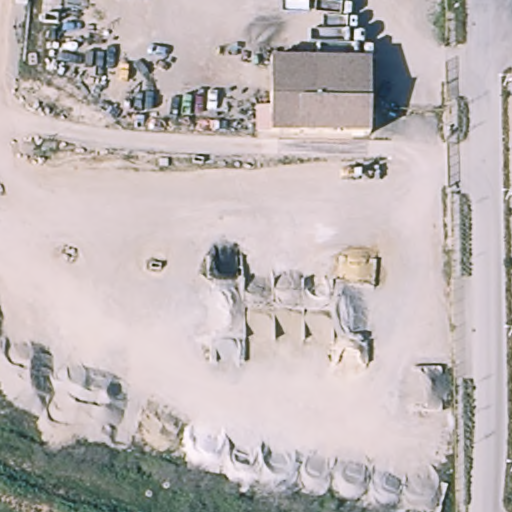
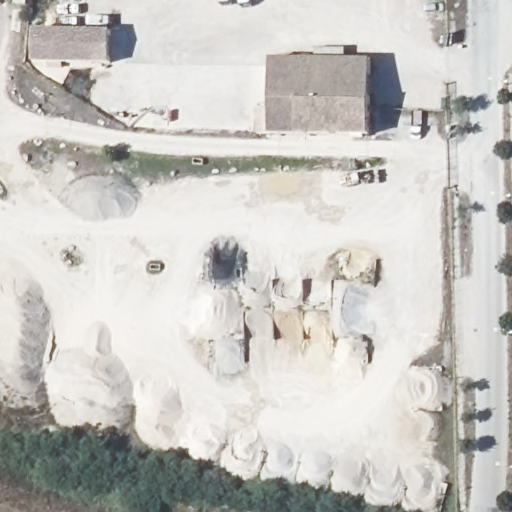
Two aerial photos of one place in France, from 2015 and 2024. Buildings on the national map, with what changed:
new [(32,63),(34,29),(112,31),(111,62),(32,63)]
unchanged [(375,60),(374,135),(274,133),(275,59),(375,60)]

